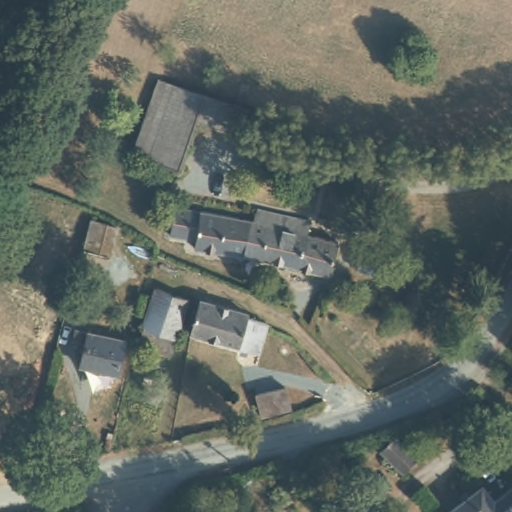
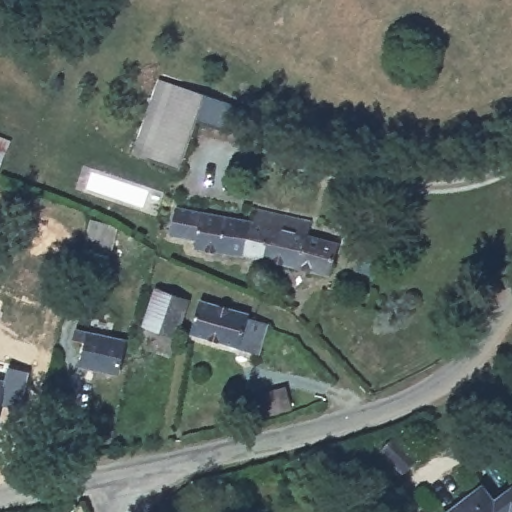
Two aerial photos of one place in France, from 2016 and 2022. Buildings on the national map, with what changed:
unchanged [(134,155),(152,80),(168,83),(161,122),(146,159),(134,155)]
unchanged [(214,95),(227,98),(221,124),(203,121),(193,120),(182,167),(146,159),(161,122),(168,83),(177,85),(214,95)]
new [(12,140),(0,171),(0,136),(12,140)]
unchanged [(310,235),(299,266),(264,258),(245,254),(218,251),(197,249),(198,239),(178,236),(178,205),(212,212),(225,215),(251,220),(257,205),(272,209),(312,222),(310,235)]
unchanged [(85,250),(93,225),(115,233),(109,259),(85,250)]
unchanged [(310,235),(340,240),(334,273),(299,266),(310,235)]
unchanged [(363,265),(369,244),(394,252),(386,274),(363,265)]
unchanged [(159,292),(192,303),(181,340),(144,332),(159,292)]
unchanged [(246,340),(228,336),(198,330),(209,295),(237,303),(255,308),(246,340)]
unchanged [(84,362),(89,339),(77,336),(79,326),(126,337),(118,370),(84,362)]
new [(6,380),(8,366),(31,371),(22,410),(2,406),(0,413),(0,378),(6,380)]
unchanged [(266,390),(292,385),(295,400),(268,406),(266,390)]
unchanged [(395,435),(412,456),(396,468),(378,447),(395,435)]
unchanged [(495,498),(512,485),(512,512),(445,512),(483,483),(495,498)]

